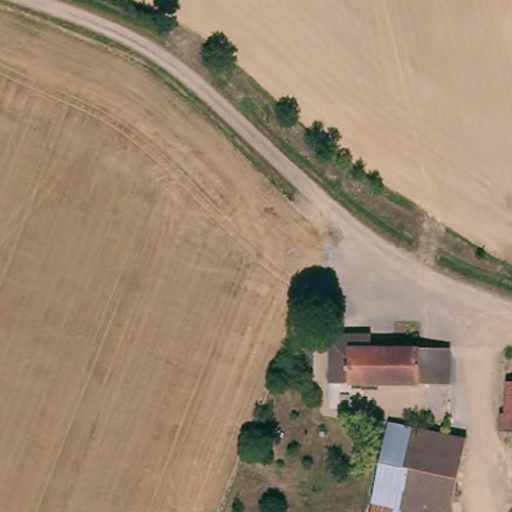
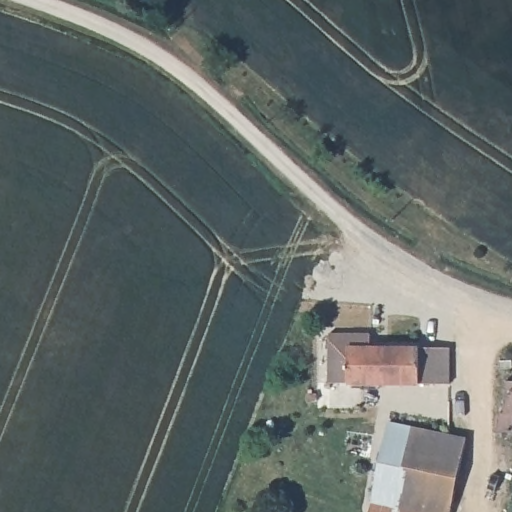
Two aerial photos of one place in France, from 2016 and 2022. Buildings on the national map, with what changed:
unchanged [(368,333),(368,346),(447,349),(447,370),(447,385),(328,382),(329,333),(368,333)]
unchanged [(512,432),(496,433),(496,413),(502,413),(502,382),(512,382),(512,432)]
unchanged [(451,512),(415,512),(372,504),(390,424),(466,439),(451,512)]

